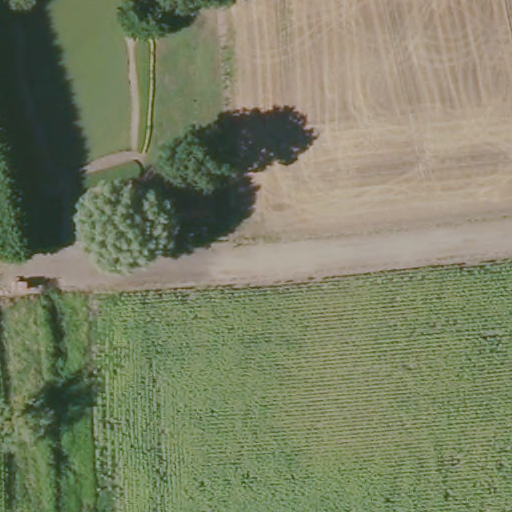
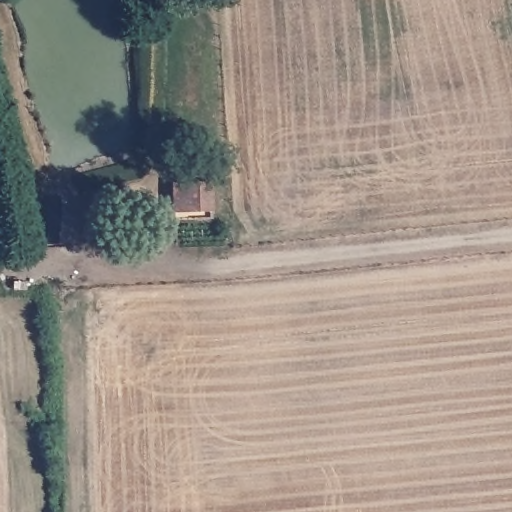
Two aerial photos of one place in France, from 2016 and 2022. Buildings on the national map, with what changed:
unchanged [(208,184),(210,208),(177,209),(175,185),(208,184)]
unchanged [(10,282),(10,270),(23,269),(23,281),(10,282)]

